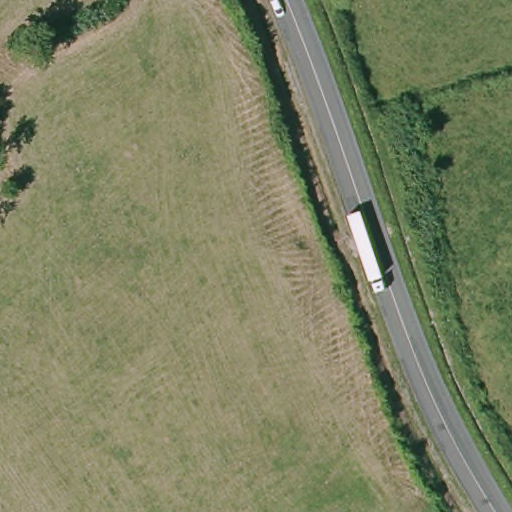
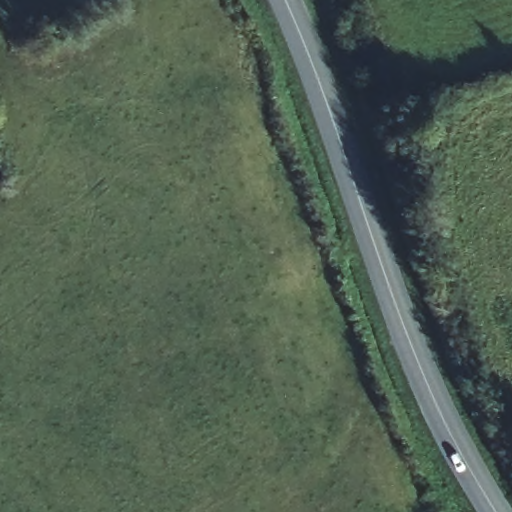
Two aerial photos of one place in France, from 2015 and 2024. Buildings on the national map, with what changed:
[]

